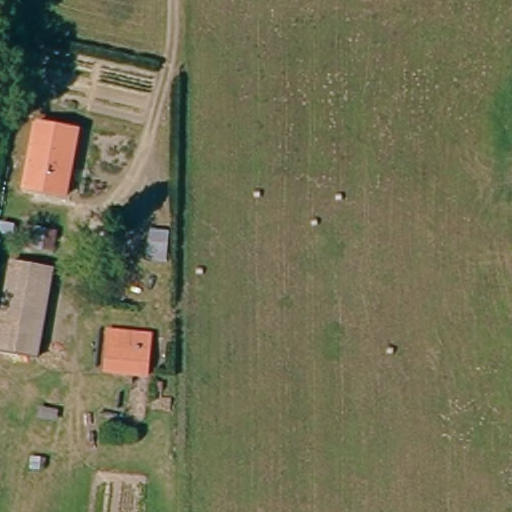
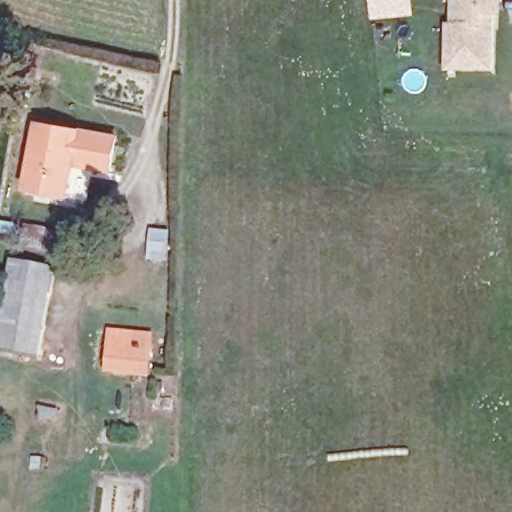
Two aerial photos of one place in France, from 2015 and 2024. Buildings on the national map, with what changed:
new [(415,18),(372,21),(370,0),(413,0),(415,18)]
new [(465,30),(465,17),(452,4),(452,0),(497,0),(497,17),(483,17),(483,31),(490,31),(490,72),(448,72),(447,30),(465,30)]
unchanged [(81,133),(68,194),(27,185),(39,124),(81,133)]
new [(81,133),(82,128),(119,134),(112,174),(74,166),(81,133)]
unchanged [(47,296),(6,288),(12,258),(52,267),(47,296)]
unchanged [(0,348),(0,312),(6,288),(47,296),(34,355),(0,348)]
unchanged [(155,345),(147,383),(111,376),(120,337),(155,345)]

